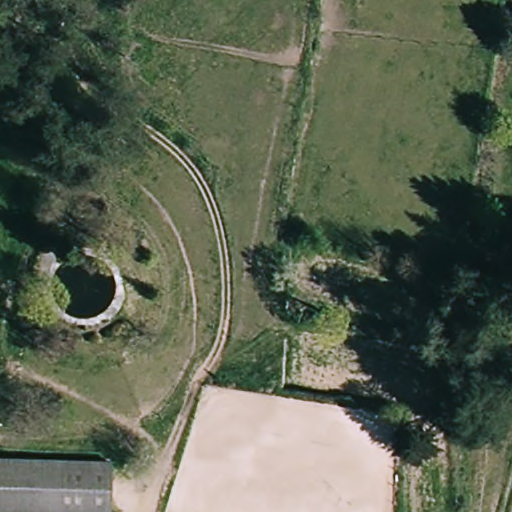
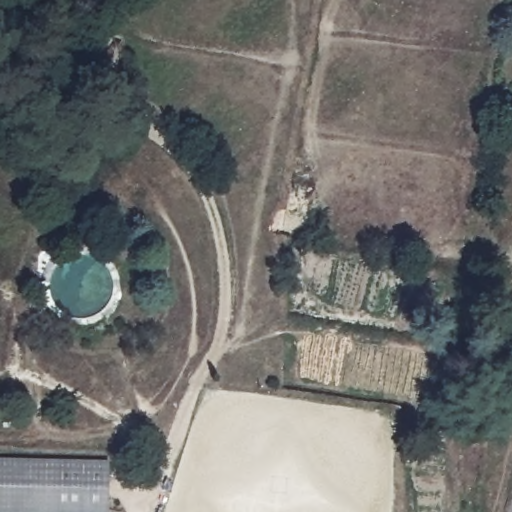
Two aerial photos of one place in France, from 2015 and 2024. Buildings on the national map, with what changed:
unchanged [(110,512),(0,512),(0,458),(112,465),(110,512)]

